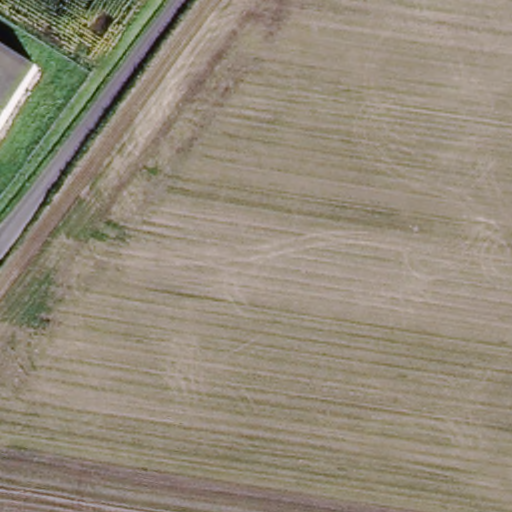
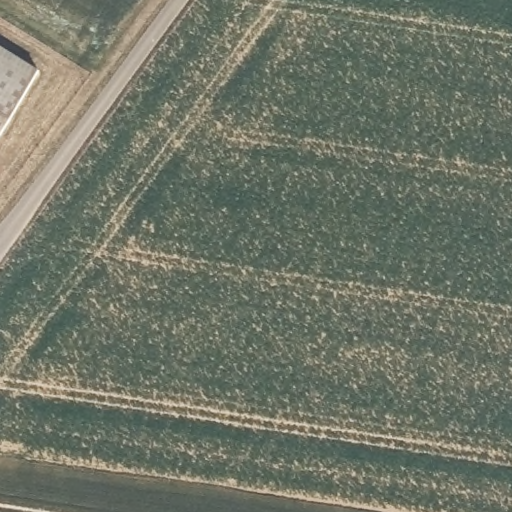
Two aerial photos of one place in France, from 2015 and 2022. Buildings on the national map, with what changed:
unchanged [(41,66),(0,130),(0,41),(41,66)]

